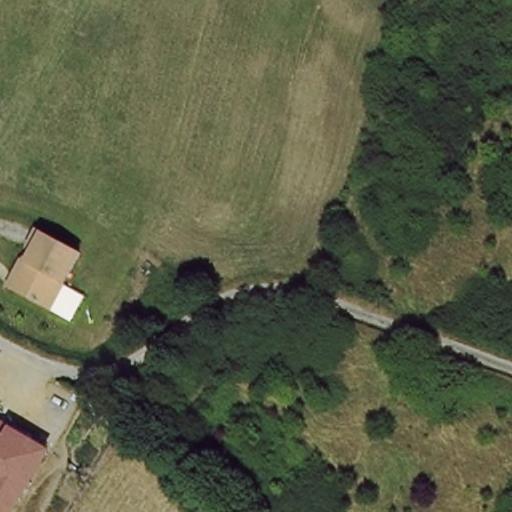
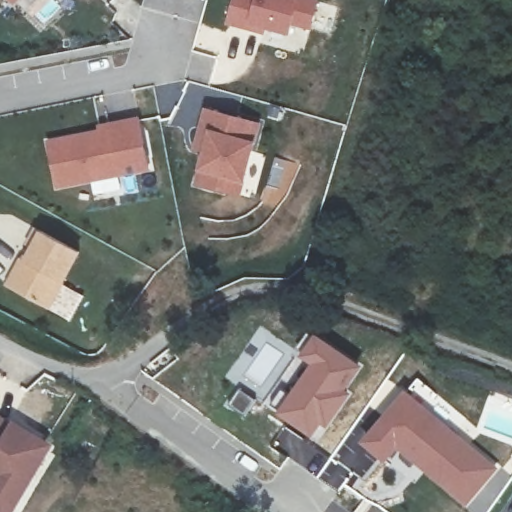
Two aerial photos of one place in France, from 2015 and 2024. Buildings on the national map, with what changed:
new [(9,0),(20,0),(14,6),(9,0)]
new [(293,25),(289,35),(268,29),(266,36),(226,24),(234,0),(321,0),(313,31),(293,25)]
new [(263,124),(256,144),(244,184),(241,197),(193,184),(198,170),(202,151),(193,150),(206,109),(263,124)]
new [(46,141),(98,129),(98,125),(139,118),(151,172),(57,190),(46,141)]
unchanged [(21,279),(28,262),(33,264),(39,250),(33,248),(40,232),(83,251),(59,309),(25,294),(16,290),(21,279)]
new [(312,366),(301,358),(317,334),(364,366),(348,390),(353,393),(328,428),(323,425),(314,439),(278,414),(312,366)]
new [(407,392),(500,470),(467,507),(399,449),(387,463),(362,441),(407,392)]
unchanged [(14,512),(0,512),(0,420),(50,451),(14,512)]

